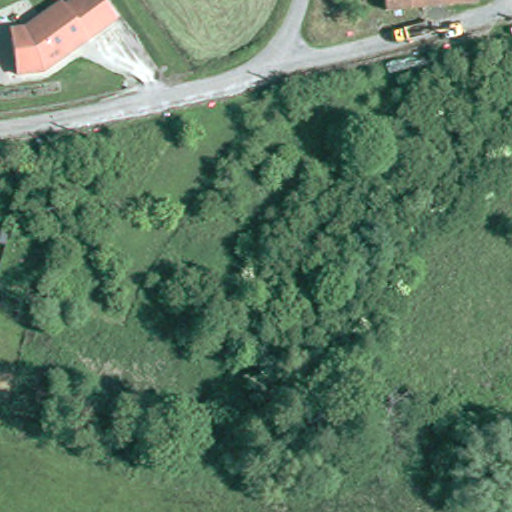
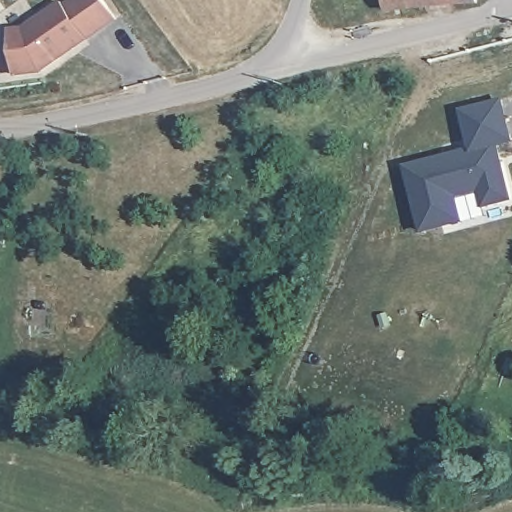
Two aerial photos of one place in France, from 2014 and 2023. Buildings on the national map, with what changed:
unchanged [(12,79),(7,43),(58,9),(61,13),(81,0),(94,0),(113,26),(84,46),(81,41),(54,59),(58,64),(40,77),(12,79)]
unchanged [(383,16),(381,0),(486,0),(487,8),(460,8),(401,15),(383,16)]
new [(500,145),(512,200),(483,209),(478,190),(458,195),(465,223),(421,234),(404,163),(468,146),(460,107),(504,97),(512,134),(512,141),(500,145)]

